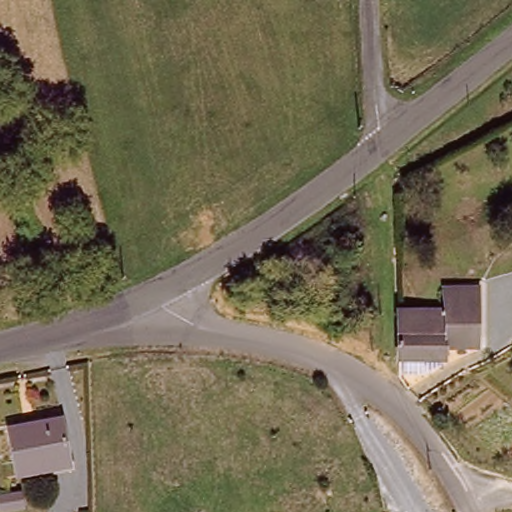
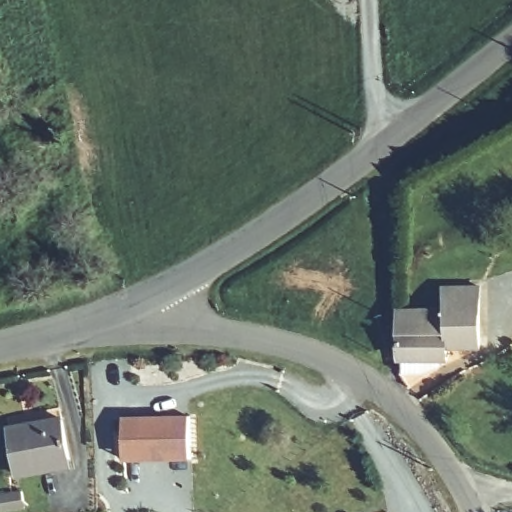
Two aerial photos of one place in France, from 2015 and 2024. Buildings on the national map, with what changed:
unchanged [(397,361),(396,310),(443,309),(443,290),(477,289),(477,347),(444,348),(444,360),(397,361)]
unchanged [(12,423),(63,414),(72,459),(20,468),(12,423)]
new [(192,459),(123,460),(123,417),(190,415),(192,459)]
unchanged [(27,508),(27,512),(0,512),(0,490),(23,488),(27,508)]

